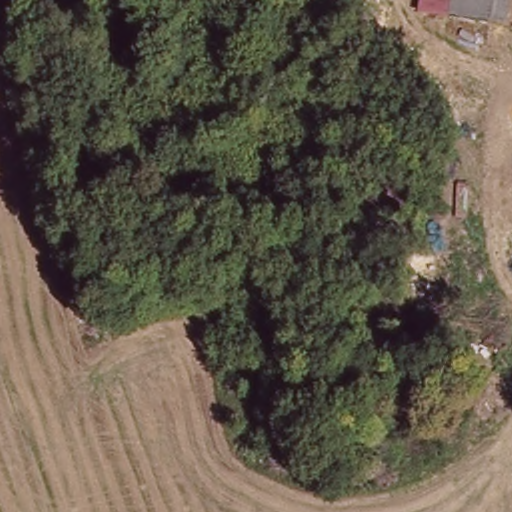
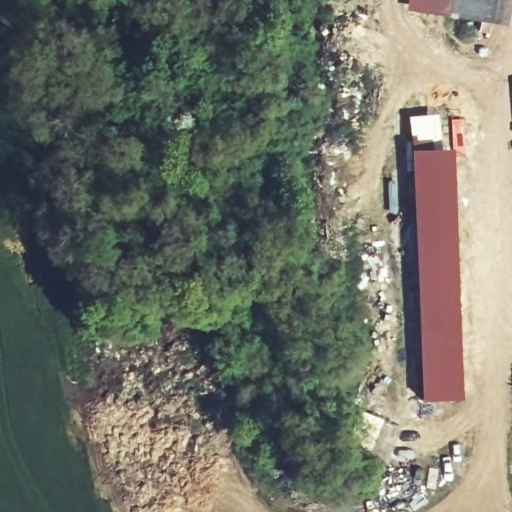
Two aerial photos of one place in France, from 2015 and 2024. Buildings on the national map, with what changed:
unchanged [(417,14),(420,0),(510,0),(506,29),(417,14)]
new [(464,401),(424,402),(410,154),(451,151),(464,401)]

